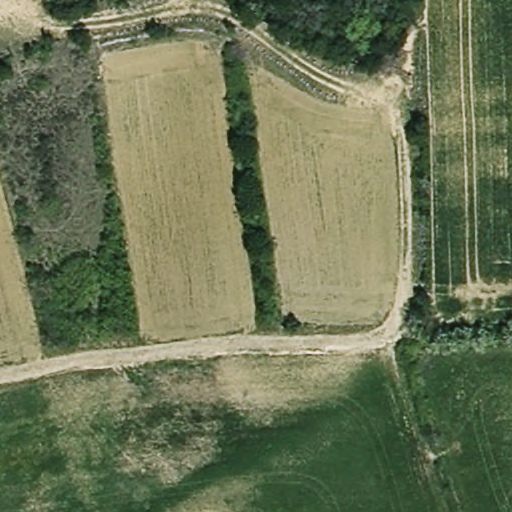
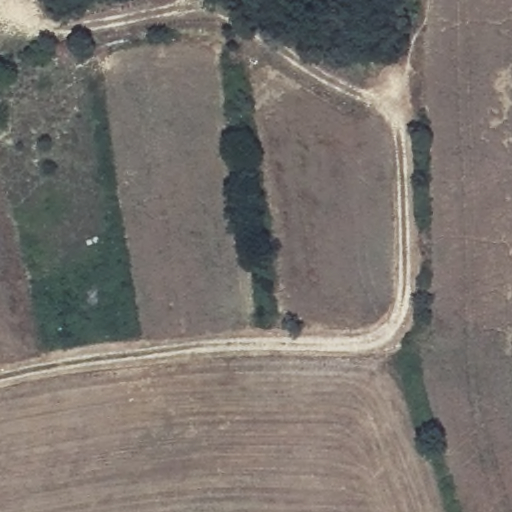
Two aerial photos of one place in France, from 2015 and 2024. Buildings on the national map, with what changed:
[]

